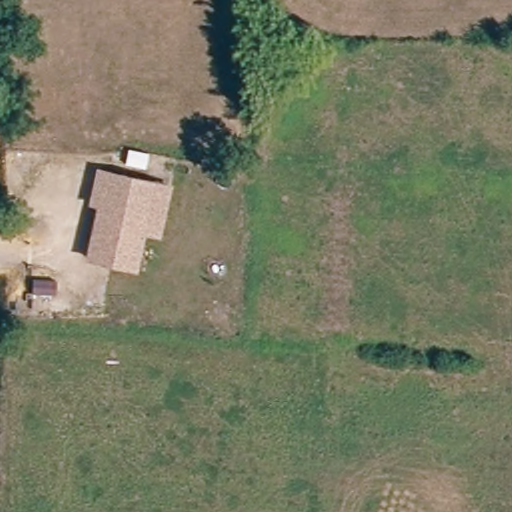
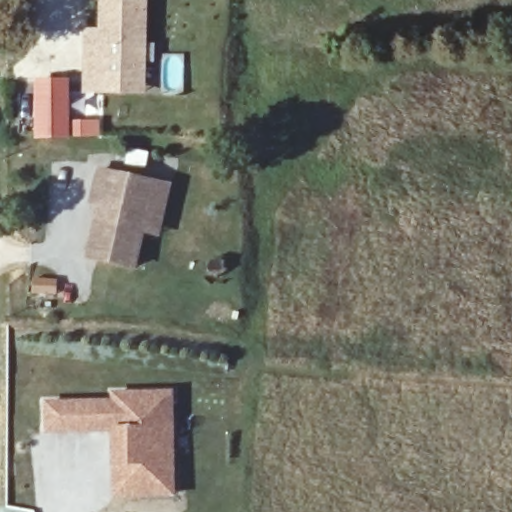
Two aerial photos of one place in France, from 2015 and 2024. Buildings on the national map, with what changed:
new [(147,96),(83,94),(87,29),(99,29),(100,0),(148,0),(147,96)]
new [(37,140),(36,83),(69,81),(70,140),(37,140)]
unchanged [(152,183),(168,187),(156,238),(140,234),(132,268),(86,257),(99,204),(91,202),(92,193),(99,170),(152,183)]
new [(116,497),(115,466),(112,432),(47,432),(47,401),(114,400),(113,393),(173,391),(176,497),(116,497)]

